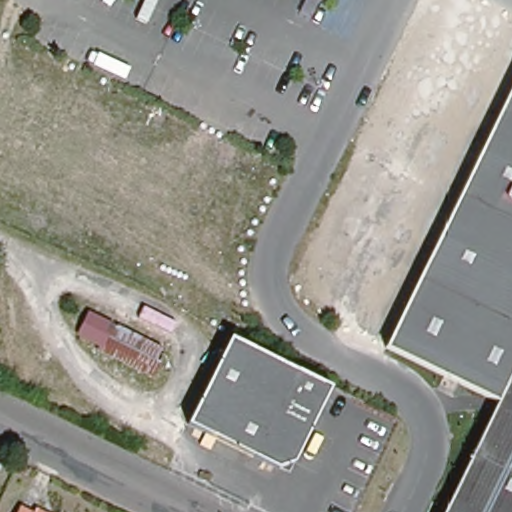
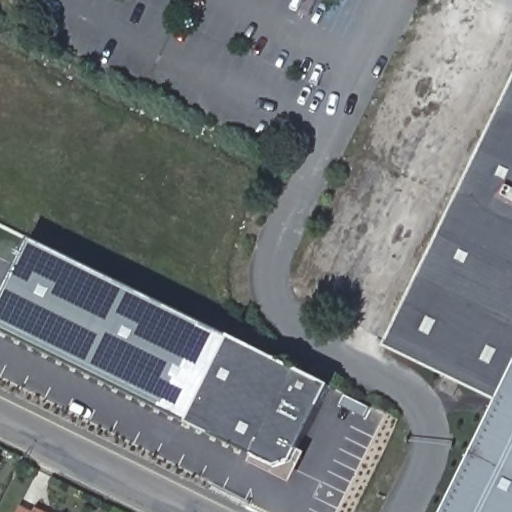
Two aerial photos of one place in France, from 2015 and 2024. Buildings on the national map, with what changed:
unchanged [(419,361),(380,342),(512,66),(512,512),(439,512),(494,397),(419,361)]
new [(230,338),(188,424),(0,331),(0,305),(31,242),(230,338)]
demolished [(157,348),(144,374),(88,347),(91,342),(70,333),(80,311),(157,348)]
unchanged [(291,467),(278,472),(186,427),(230,337),(254,349),(331,387),(291,467)]
unchanged [(15,512),(16,510),(22,512),(15,512)]

